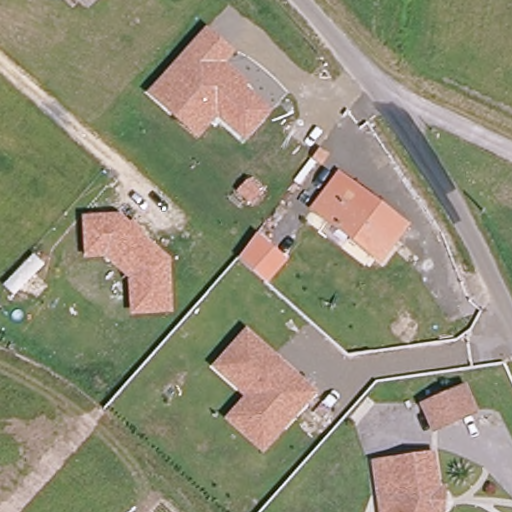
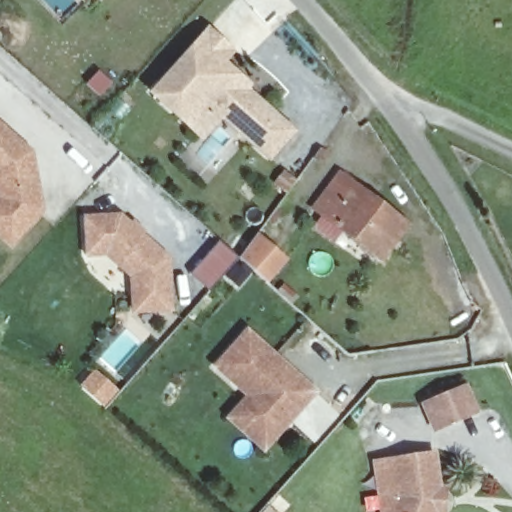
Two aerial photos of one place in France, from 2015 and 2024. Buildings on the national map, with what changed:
unchanged [(243,87),(267,111),(243,136),(220,115),(191,86),(171,108),(151,89),(189,51),(210,29),(231,50),(221,60),(246,84),(243,87)]
unchanged [(220,115),(199,137),(171,108),(191,86),(220,115)]
new [(45,212),(11,249),(0,239),(0,123),(33,151),(45,212)]
unchanged [(366,253),(317,213),(330,197),(342,181),(394,220),(388,227),(366,253)]
unchanged [(84,258),(81,214),(121,212),(171,257),(173,312),(131,315),(128,278),(105,257),(84,258)]
unchanged [(288,259),(266,284),(236,257),(257,233),(288,259)]
unchanged [(230,416),(240,405),(250,394),(217,364),(248,330),(274,354),(281,360),(315,390),(288,420),(264,447),(230,416)]
unchanged [(424,405),(430,402),(428,396),(440,391),(443,397),(465,388),(475,413),(449,424),(435,430),(424,405)]
unchanged [(392,461),(433,454),(439,492),(445,491),(442,512),(438,512),(437,511),(437,512),(393,512),(398,498),(392,461)]
unchanged [(393,512),(381,512),(374,463),(392,461),(398,498),(393,512)]

